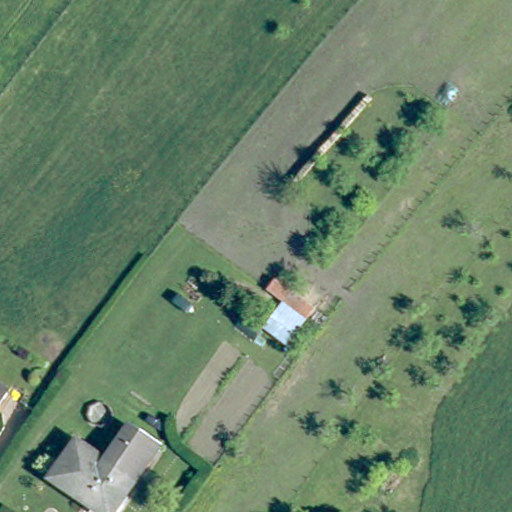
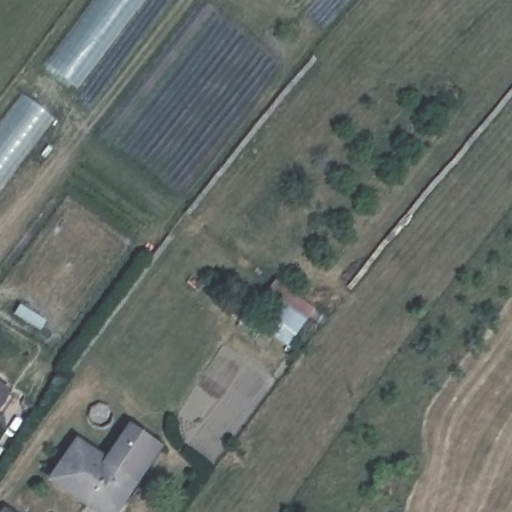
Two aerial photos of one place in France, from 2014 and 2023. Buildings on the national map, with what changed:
new [(77,90),(46,65),(95,0),(145,0),(77,90)]
new [(21,94),(54,119),(0,192),(0,122),(21,94)]
unchanged [(14,396),(0,414),(0,386),(14,396)]
unchanged [(53,482),(81,444),(108,465),(134,431),(162,453),(119,512),(94,512),(90,509),(53,482)]

